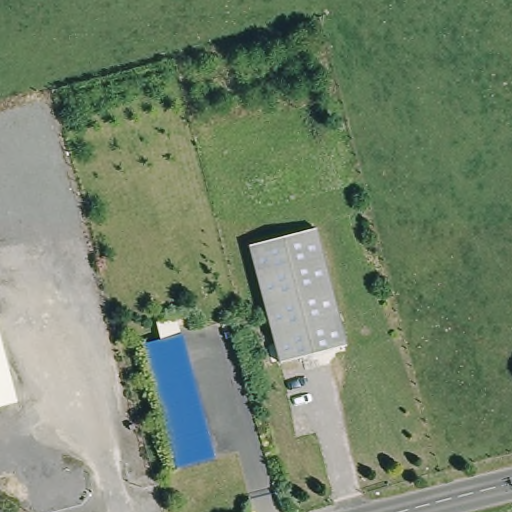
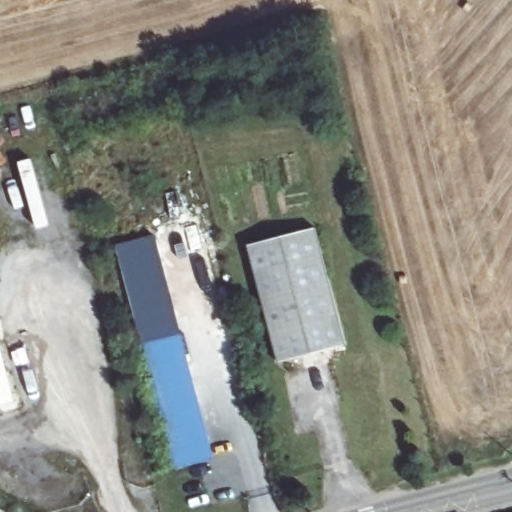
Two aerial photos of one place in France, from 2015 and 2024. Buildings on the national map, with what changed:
unchanged [(244,242),(312,225),(343,339),(274,358),(244,242)]
new [(117,245),(154,235),(178,332),(143,340),(117,245)]
unchanged [(143,340),(178,332),(210,458),(174,467),(143,340)]
unchanged [(0,406),(0,357),(12,403),(0,406)]

